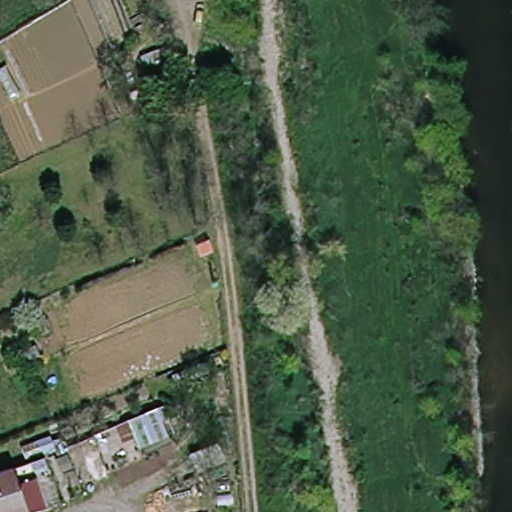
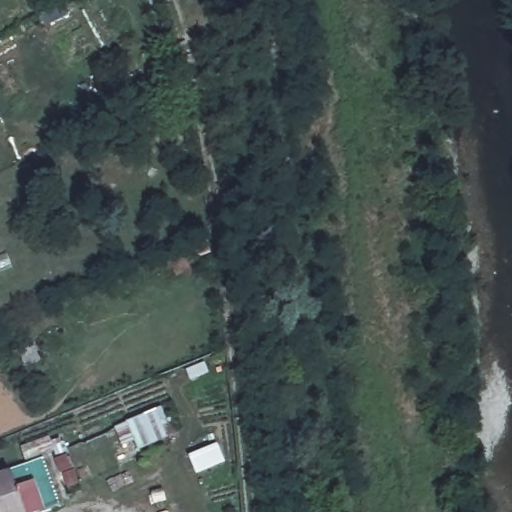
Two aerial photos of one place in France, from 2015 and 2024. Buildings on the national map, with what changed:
unchanged [(193,235),(199,250),(188,255),(184,244),(188,243),(186,238),(193,235)]
unchanged [(36,458),(55,509),(47,512),(0,512),(0,472),(36,458)]

